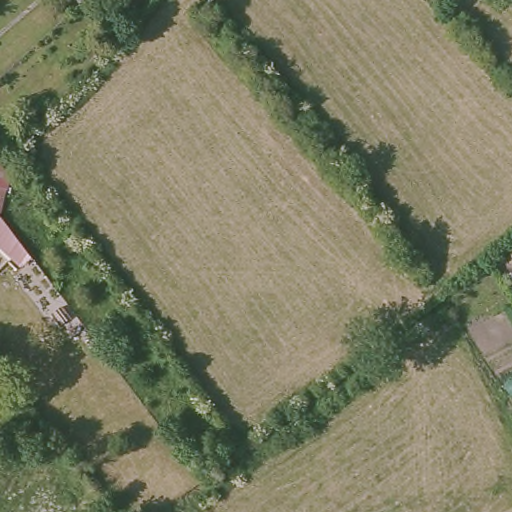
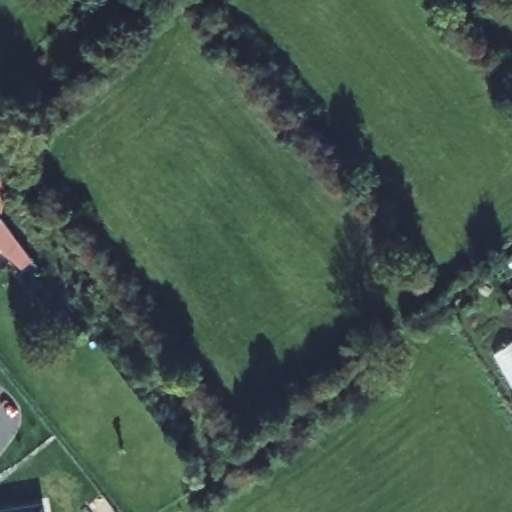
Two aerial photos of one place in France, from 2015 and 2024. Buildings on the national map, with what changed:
unchanged [(7,165),(2,214),(0,214),(0,164),(7,165)]
unchanged [(8,245),(0,253),(0,233),(8,245)]
new [(43,497),(47,512),(0,512),(0,508),(43,497)]

